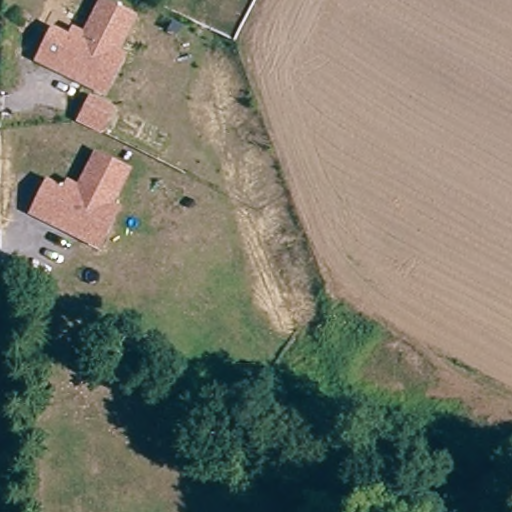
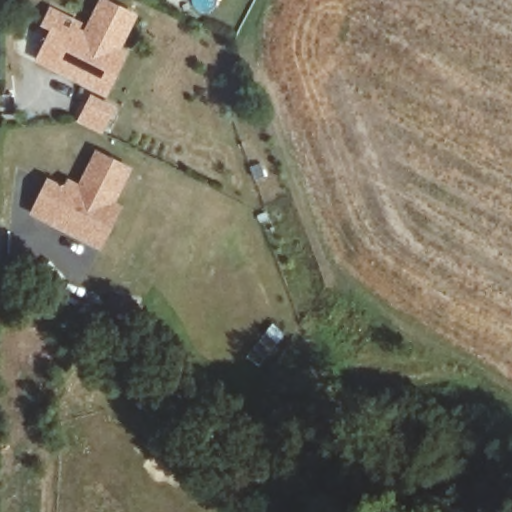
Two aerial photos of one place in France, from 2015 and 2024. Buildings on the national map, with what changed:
unchanged [(103,95),(90,87),(69,74),(71,70),(58,61),(55,66),(38,56),(56,26),(72,36),(76,28),(87,35),(107,1),(138,20),(116,55),(124,60),(103,95)]
unchanged [(86,96),(108,109),(104,115),(93,133),(71,120),(83,102),(86,96)]
unchanged [(95,248),(82,240),(61,227),(63,223),(50,215),(46,219),(30,209),(48,179),(64,189),(68,182),(79,188),(99,155),(129,173),(108,209),(116,213),(95,248)]

